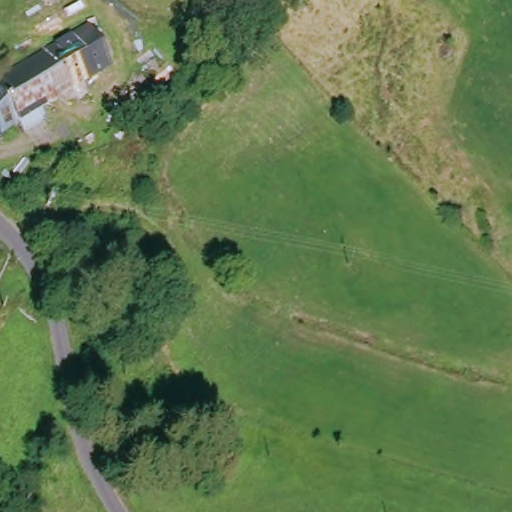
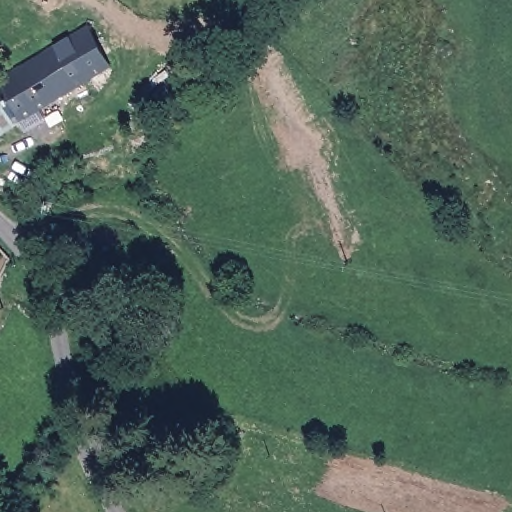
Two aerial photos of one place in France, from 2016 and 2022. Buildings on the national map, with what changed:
unchanged [(41,120),(25,128),(20,120),(13,122),(0,94),(0,80),(55,48),(88,29),(107,70),(36,108),(41,120)]

